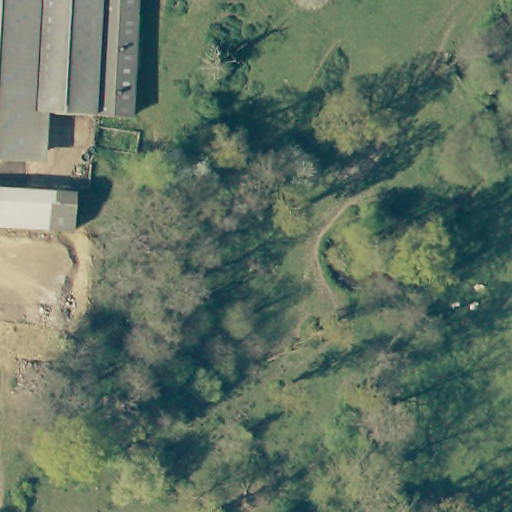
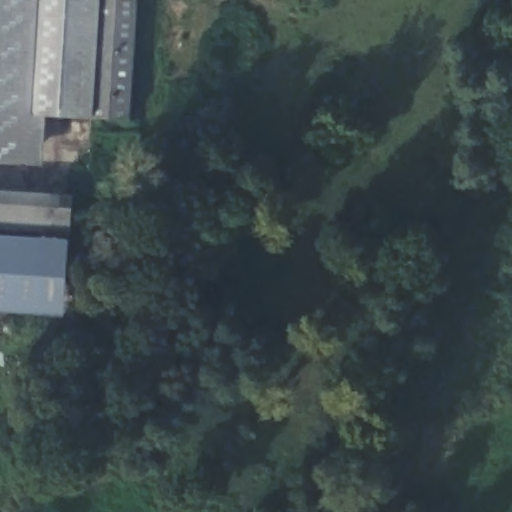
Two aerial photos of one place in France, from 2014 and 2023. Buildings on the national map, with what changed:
unchanged [(49,110),(47,155),(0,153),(0,0),(159,0),(150,115),(49,110)]
unchanged [(75,236),(0,232),(0,190),(77,194),(75,236)]
new [(75,236),(70,311),(0,308),(0,232),(75,236)]

